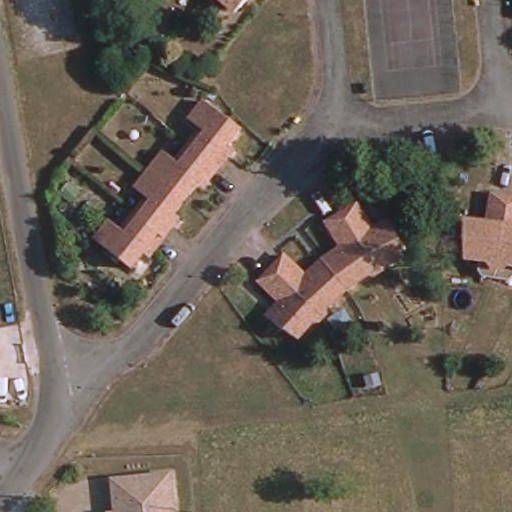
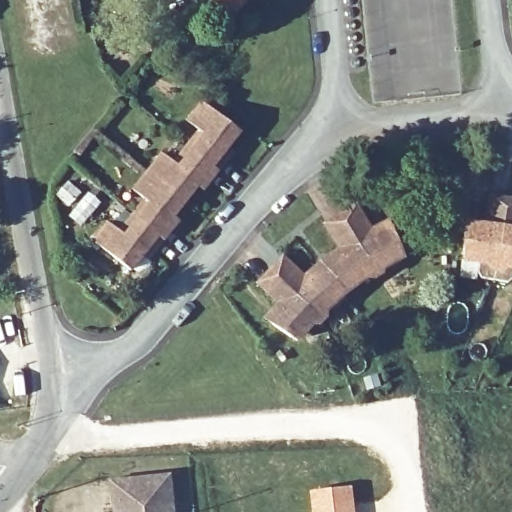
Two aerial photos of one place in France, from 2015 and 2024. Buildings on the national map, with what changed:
unchanged [(237,13),(222,0),(250,0),(237,13)]
unchanged [(173,163),(197,134),(186,125),(200,106),(237,134),(220,155),(226,161),(205,186),(200,183),(182,204),(180,196),(148,171),(161,154),(173,163)]
unchanged [(167,220),(173,227),(150,253),(143,253),(129,271),(91,242),(107,223),(120,232),(146,198),(134,189),(148,171),(180,196),(182,204),(167,220)]
unchanged [(480,254),(464,251),(463,215),(487,217),(492,190),(512,194),(512,272),(480,268),(480,254)]
unchanged [(256,278),(284,254),(303,272),(339,245),(322,220),(351,201),(369,225),(386,217),(401,249),(345,286),(320,313),(291,337),(264,315),(277,299),(256,278)]
unchanged [(173,478),(177,512),(118,512),(114,484),(173,478)]
new [(355,512),(311,512),(308,492),(351,485),(355,512)]

